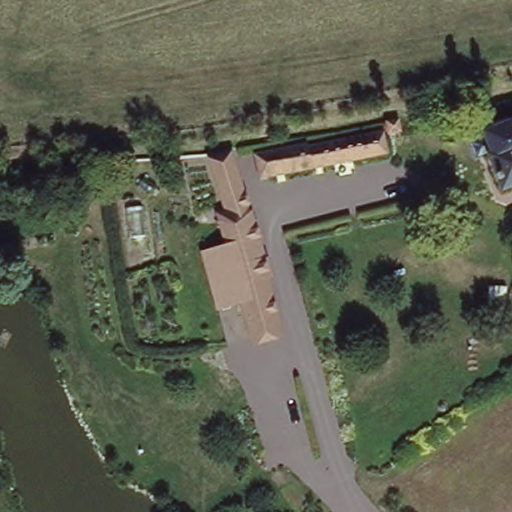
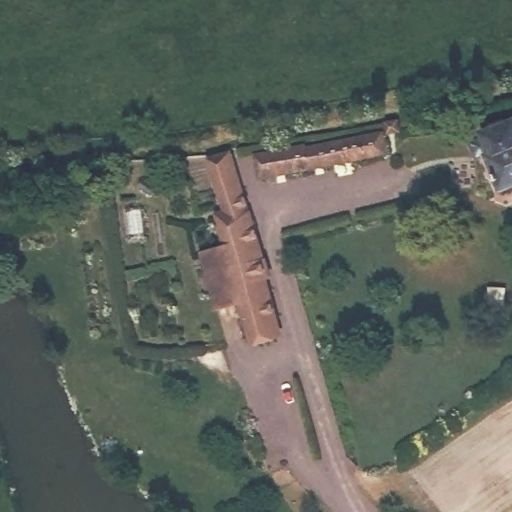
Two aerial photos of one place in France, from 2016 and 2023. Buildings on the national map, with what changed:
unchanged [(262,178),(253,150),(399,118),(403,131),(385,135),(389,152),(262,178)]
unchanged [(495,154),(486,129),(512,119),(512,189),(501,192),(488,156),(495,154)]
unchanged [(260,254),(268,253),(279,291),(269,294),(278,330),(251,338),(222,244),(211,208),(222,204),(206,151),(231,146),(260,254)]
unchanged [(203,249),(222,244),(251,338),(229,344),(203,249)]

